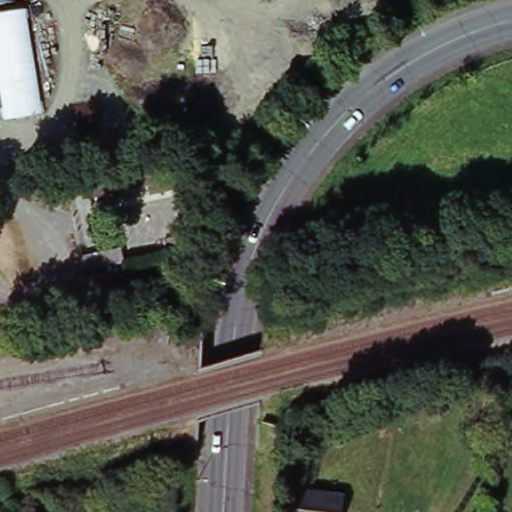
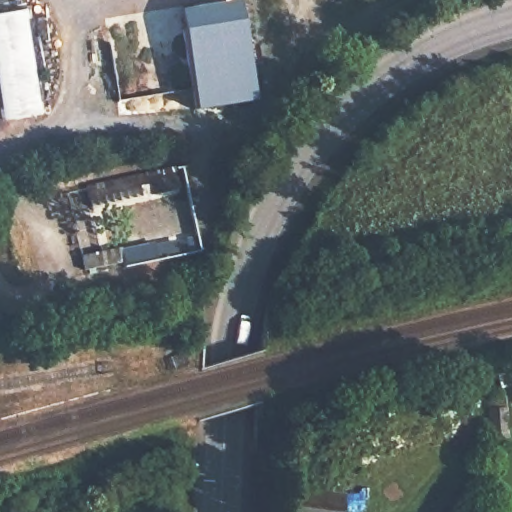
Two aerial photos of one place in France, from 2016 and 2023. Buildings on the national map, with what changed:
new [(237,0),(241,0),(256,101),(196,110),(179,9),(237,0)]
unchanged [(26,10),(43,115),(1,121),(0,111),(0,14),(26,10)]
unchanged [(178,189),(92,208),(87,187),(174,169),(178,189)]
unchanged [(120,249),(124,261),(85,270),(82,256),(120,249)]
unchanged [(488,438),(486,407),(486,396),(502,395),(503,406),(505,437),(488,438)]
unchanged [(346,495),(344,512),(294,512),(297,489),(346,495)]

